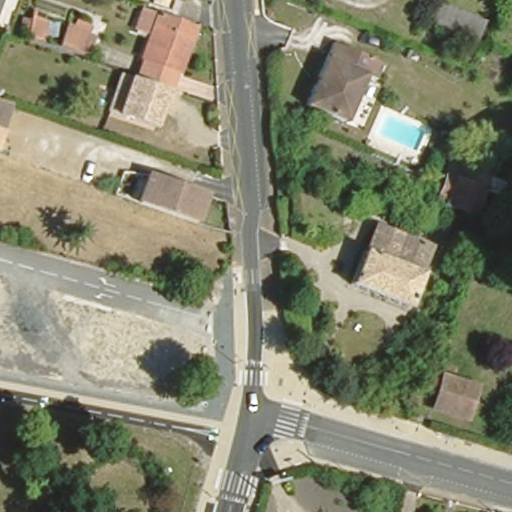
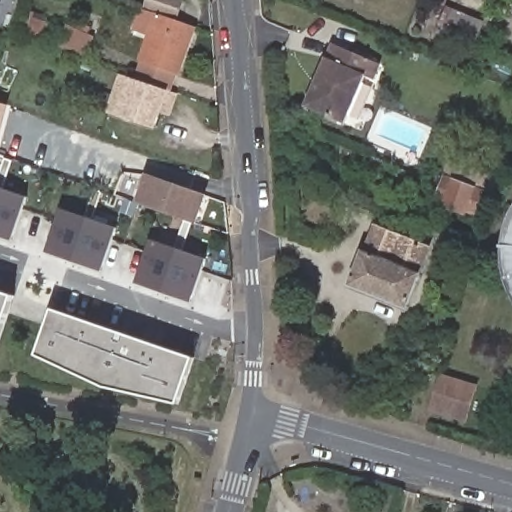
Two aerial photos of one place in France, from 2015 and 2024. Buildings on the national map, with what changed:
unchanged [(186,2),(180,18),(153,7),(156,0),(180,0),(186,2)]
unchanged [(495,30),(485,57),(445,42),(447,38),(436,34),(445,10),(495,30)]
unchanged [(54,22),(49,38),(40,35),(39,37),(22,32),(27,14),(54,22)]
unchanged [(147,59),(154,36),(139,31),(146,14),(197,31),(183,72),(175,95),(139,81),(147,59)]
unchanged [(56,44),(62,23),(75,27),(77,19),(87,22),(84,31),(91,33),(83,54),(56,44)]
unchanged [(347,117),(305,101),(322,55),(329,37),(378,56),(372,72),(365,70),(347,117)]
unchanged [(163,116),(157,132),(107,114),(121,75),(128,78),(139,81),(175,95),(180,96),(174,112),(172,119),(163,116)]
demolished [(0,145),(0,99),(14,103),(0,145)]
unchanged [(0,109),(1,109),(0,110),(0,109)]
unchanged [(149,170),(206,190),(194,222),(138,202),(149,170)]
unchanged [(460,218),(458,222),(442,214),(443,210),(433,206),(442,186),(448,170),(486,186),(479,201),(471,222),(460,218)]
new [(0,237),(0,187),(27,196),(12,240),(0,237)]
new [(45,252),(60,208),(89,217),(117,227),(102,272),(74,262),(45,252)]
unchanged [(346,283),(358,251),(363,253),(375,226),(422,247),(413,271),(417,273),(403,307),(346,283)]
new [(135,283),(150,238),(179,248),(207,258),(191,302),(164,293),(135,283)]
new [(15,295),(0,340),(0,286),(17,291),(15,295)]
demolished [(116,319),(102,360),(33,333),(32,349),(0,330),(0,286),(33,298),(116,319)]
new [(195,357),(178,405),(105,388),(36,356),(52,308),(195,357)]
unchanged [(441,375),(473,383),(465,413),(433,405),(441,375)]

